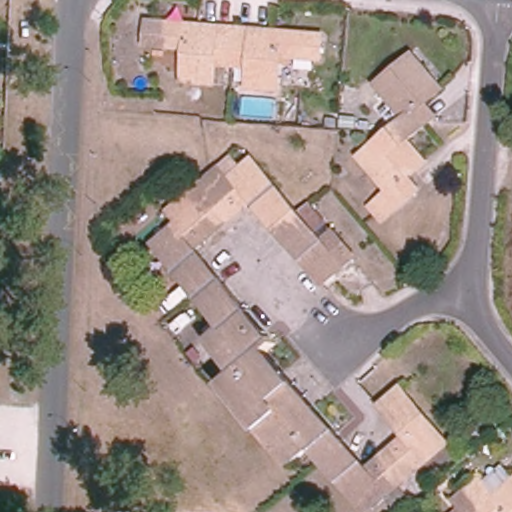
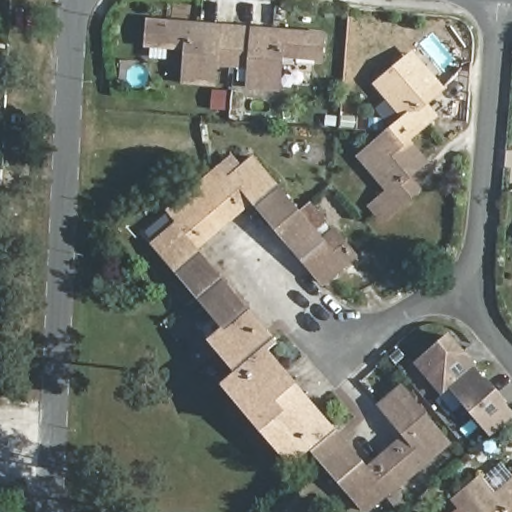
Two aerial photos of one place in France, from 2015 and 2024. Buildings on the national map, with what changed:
unchanged [(210,85),(180,82),(183,49),(143,46),(145,23),(202,28),(202,38),(214,39),(215,29),(232,30),(230,62),(229,66),(224,66),(222,86),(210,85)]
unchanged [(250,31),(249,41),(261,42),(262,32),(319,37),(317,60),(277,57),(275,90),(245,88),(247,68),(229,66),(230,62),(232,30),(250,31)]
unchanged [(392,106),(376,87),(406,62),(417,75),(427,67),(445,89),(422,108),(432,121),(410,139),(400,147),(389,134),(396,129),(383,113),(392,106)]
unchanged [(427,160),(405,180),(415,193),(383,219),(372,206),(388,193),(359,159),(389,134),(400,147),(410,139),(427,160)]
unchanged [(252,200),(195,249),(221,279),(268,335),(272,339),(276,344),(267,352),(316,409),(322,415),(343,441),(338,444),(321,459),(311,448),(292,465),(225,387),(239,375),(211,342),(226,329),(155,245),(180,224),(186,219),(175,205),(212,174),(222,187),(229,182),(255,159),(300,212),(277,231),(252,200)]
unchanged [(356,256),(323,284),(316,276),(277,231),(300,212),(302,214),(312,205),(332,228),(321,237),(326,242),(336,234),(356,256)]
new [(512,407),(512,419),(491,436),(450,388),(441,396),(413,364),(451,333),(512,407)]
unchanged [(403,389),(442,434),(448,442),(434,455),(398,485),(379,463),(407,439),(381,408),(403,389)]
unchanged [(388,494),(367,512),(365,512),(321,459),(338,444),(343,441),(369,472),(379,463),(398,485),(397,487),(412,503),(403,511),(388,494)]
unchanged [(481,480),(494,495),(512,480),(512,512),(508,512),(486,512),(468,491),(481,480)]
unchanged [(468,491),(486,512),(464,512),(456,502),(468,491)]

